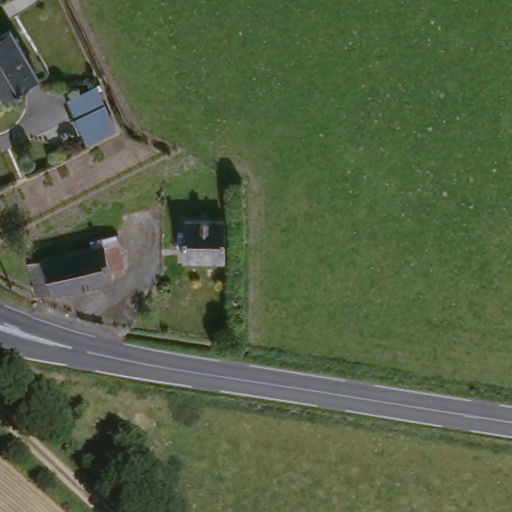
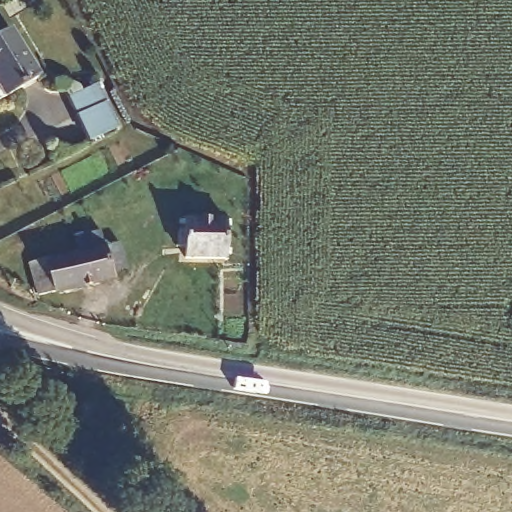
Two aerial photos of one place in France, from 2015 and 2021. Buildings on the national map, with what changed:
unchanged [(7,94),(0,78),(0,34),(16,26),(41,76),(7,94)]
unchanged [(119,129),(87,141),(69,96),(97,83),(119,129)]
unchanged [(225,250),(185,250),(185,215),(226,214),(225,250)]
unchanged [(120,272),(52,286),(45,253),(114,237),(120,272)]

